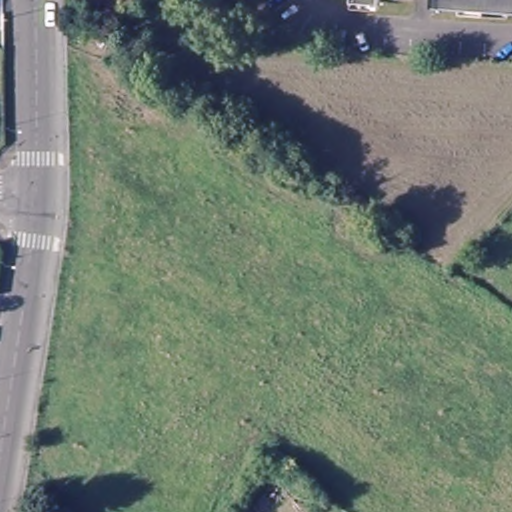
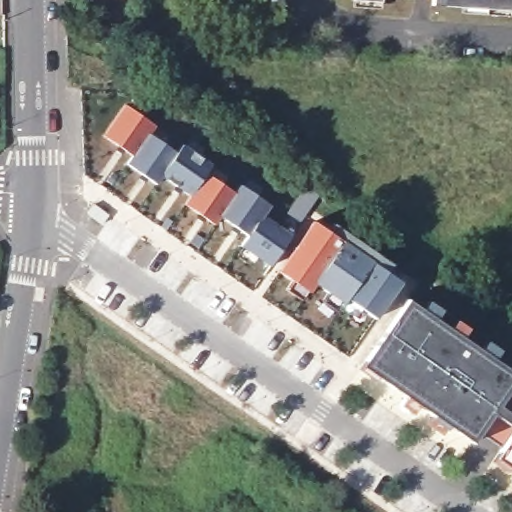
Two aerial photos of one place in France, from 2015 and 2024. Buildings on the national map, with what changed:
unchanged [(381,5),(352,2),(352,0),(381,0),(381,5)]
unchanged [(512,14),(433,8),(434,0),(512,0),(512,14)]
new [(241,249),(249,235),(222,217),(216,227),(185,205),(191,195),(163,176),(157,184),(129,164),(134,156),(104,135),(126,105),(156,126),(150,133),(177,153),(184,145),(213,164),(207,172),(236,194),(242,185),(271,205),(267,211),(293,232),(270,267),(241,249)]
new [(317,283),(308,293),(280,270),(314,221),(402,281),(377,318),(317,283)]
new [(512,387),(498,406),(512,414),(512,426),(493,413),(471,442),(363,365),(407,301),(512,375),(512,387)]
new [(512,432),(512,470),(495,457),(512,432)]

